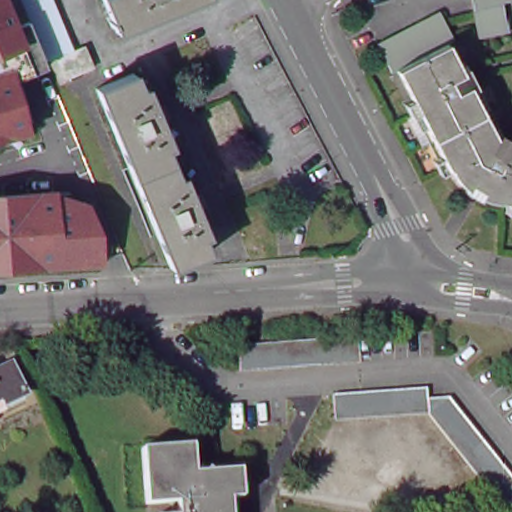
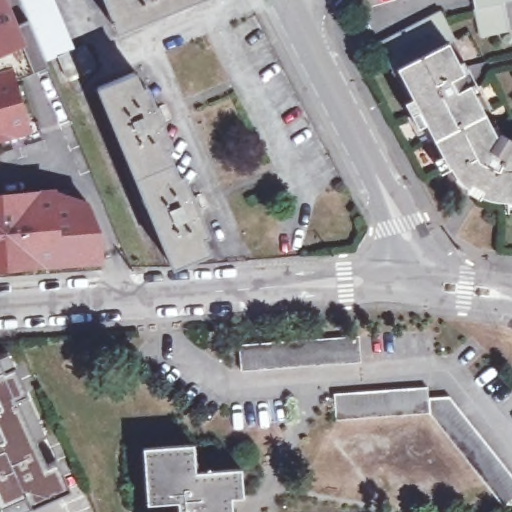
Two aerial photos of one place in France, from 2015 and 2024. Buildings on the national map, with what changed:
unchanged [(48,64),(11,75),(0,78),(0,0),(24,0),(31,19),(48,64)]
unchanged [(86,49),(94,70),(67,81),(59,60),(52,62),(48,64),(31,19),(24,0),(53,0),(75,53),(86,49)]
unchanged [(115,25),(112,25),(109,19),(112,17),(106,0),(195,0),(118,32),(115,25)]
unchanged [(486,38),(477,0),(507,0),(512,21),(512,32),(486,38)]
unchanged [(510,206),(511,197),(485,190),(483,193),(471,187),(471,185),(475,179),(471,177),(467,171),(459,160),(455,162),(445,167),(438,156),(448,151),(440,135),(431,120),(423,124),(410,99),(417,95),(400,65),(396,67),(390,56),(383,40),(444,9),(458,36),(453,39),(466,62),(470,61),(472,67),(470,68),(475,80),(478,79),(481,83),(478,85),(502,131),(512,138),(512,206),(510,206)]
unchanged [(102,86),(139,71),(152,101),(156,100),(160,109),(165,107),(171,122),(167,123),(170,130),(165,132),(190,190),(194,189),(197,197),(202,195),(208,210),(204,212),(206,220),(202,221),(215,251),(177,267),(102,86)]
unchanged [(27,132),(0,140),(0,78),(11,75),(15,87),(27,132)]
unchanged [(58,194),(91,206),(101,263),(41,268),(40,265),(0,268),(0,193),(57,190),(58,194)]
unchanged [(365,360),(246,366),(245,342),(364,337),(365,360)]
new [(14,365),(27,395),(16,400),(45,463),(56,458),(70,490),(29,507),(25,497),(0,508),(0,363),(2,369),(14,365)]
demolished [(26,398),(0,410),(0,369),(10,365),(26,398)]
unchanged [(434,413),(342,417),(341,392),(433,387),(435,398),(456,397),(512,467),(512,502),(508,505),(434,413)]
unchanged [(178,502),(155,503),(153,448),(191,447),(204,447),(204,471),(247,468),(248,497),(235,497),(236,512),(178,512),(178,502)]

